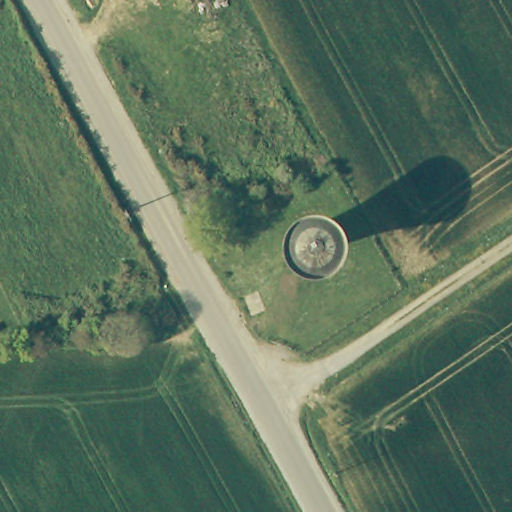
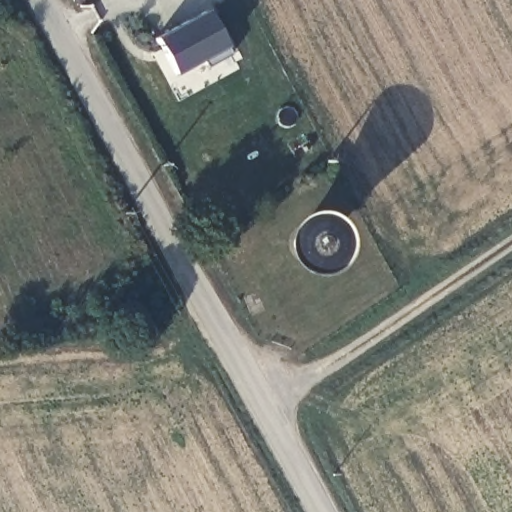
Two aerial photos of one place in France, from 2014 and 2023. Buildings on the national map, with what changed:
new [(209,9),(227,45),(232,55),(207,69),(202,60),(175,74),(157,37),(209,9)]

